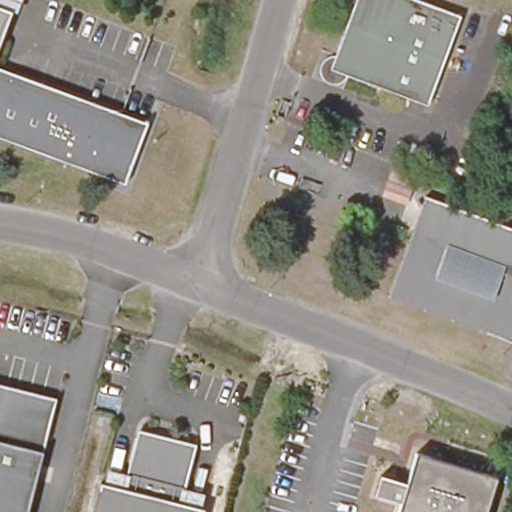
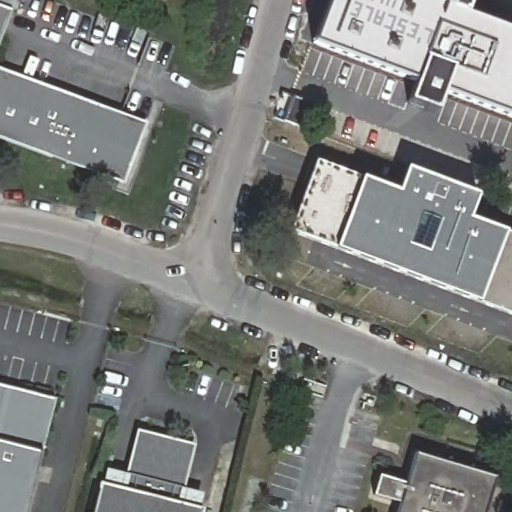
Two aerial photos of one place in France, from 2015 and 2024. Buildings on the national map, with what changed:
new [(445,0),(468,0),(465,12),(512,30),(512,116),(442,91),(435,109),(409,99),(415,80),(314,42),(329,0),(433,0),(444,4),(445,0)]
demolished [(406,0),(455,18),(423,107),(326,71),(352,0),(406,0)]
unchanged [(10,7),(1,32),(0,35),(0,4),(10,7)]
unchanged [(100,170),(0,134),(0,64),(149,118),(137,150),(126,180),(100,170)]
new [(469,217),(512,233),(512,315),(289,231),(316,160),(398,190),(407,167),(478,193),(469,217)]
demolished [(512,322),(509,331),(512,344),(486,334),(482,322),(398,292),(419,234),(436,226),(423,198),(512,232),(512,322)]
unchanged [(54,400),(27,512),(0,512),(0,387),(54,400)]
unchanged [(96,480),(118,486),(131,434),(139,436),(141,429),(183,439),(182,447),(189,449),(177,500),(199,506),(198,512),(88,512),(96,480)]
unchanged [(478,512),(397,512),(400,503),(373,495),(379,474),(406,482),(414,453),(481,472),(489,475),(478,512)]

